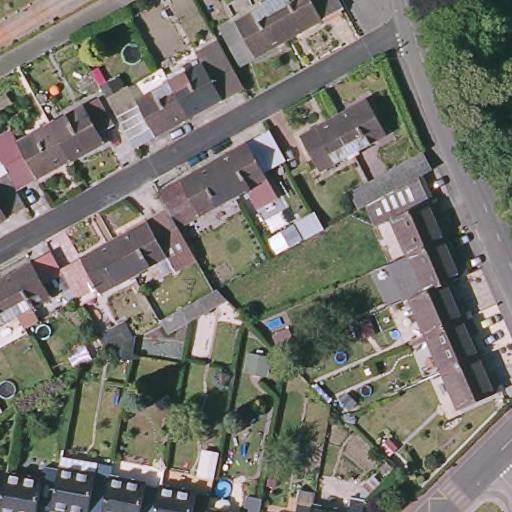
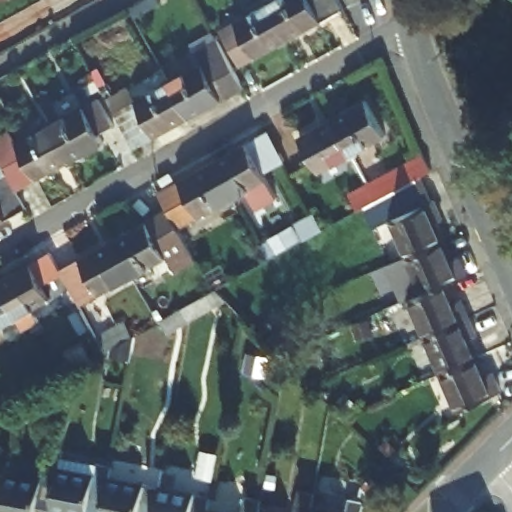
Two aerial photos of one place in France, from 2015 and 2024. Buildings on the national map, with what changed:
unchanged [(279,0),(339,0),(345,11),(290,41),(270,5),(279,0)]
unchanged [(290,41),(242,67),(222,31),(270,5),(290,41)]
unchanged [(190,119),(170,83),(203,65),(197,55),(221,42),(246,87),(190,119)]
unchanged [(170,83),(190,119),(135,149),(115,113),(170,83)]
unchanged [(50,126),(100,98),(115,128),(99,136),(103,144),(70,162),(50,126)]
unchanged [(335,118),(366,100),(385,136),(354,153),(335,118)]
unchanged [(319,172),(300,137),(335,118),(354,153),(319,172)]
unchanged [(18,191),(0,159),(0,154),(50,126),(70,162),(18,191)]
unchanged [(208,160),(265,130),(282,160),(260,171),(273,197),(253,208),(242,188),(228,196),(208,160)]
unchanged [(432,220),(440,240),(402,255),(386,218),(374,222),(365,204),(355,209),(346,192),(365,182),(421,152),(430,169),(419,175),(437,217),(432,220)]
unchanged [(27,208),(0,223),(0,159),(18,191),(27,208)]
unchanged [(163,209),(153,190),(208,160),(228,196),(174,227),(163,209)]
unchanged [(109,239),(163,209),(174,227),(190,257),(169,269),(162,256),(129,274),(109,239)]
unchanged [(295,222),(315,211),(325,229),(305,240),(295,222)]
unchanged [(59,274),(56,268),(109,239),(129,274),(75,303),(59,274)]
unchanged [(440,240),(447,256),(453,254),(461,274),(442,282),(418,292),(402,255),(440,240)]
unchanged [(0,279),(47,252),(56,268),(59,274),(40,284),(47,298),(13,316),(0,293),(0,279)]
unchanged [(422,334),(406,297),(418,292),(442,282),(450,301),(458,298),(465,316),(422,334)]
unchanged [(0,324),(0,293),(13,316),(0,324)]
unchanged [(422,334),(465,316),(465,317),(472,334),(465,337),(473,356),(437,370),(422,334)]
unchanged [(98,335),(125,320),(134,335),(137,333),(132,357),(108,353),(107,350),(98,335)]
unchanged [(287,330),(293,344),(280,349),(275,335),(287,330)]
unchanged [(437,370),(473,356),(481,374),(489,371),(496,389),(454,409),(437,370)]
unchanged [(107,475),(101,512),(93,512),(50,504),(55,479),(57,466),(92,473),(95,459),(110,462),(107,475)]
unchanged [(0,507),(0,470),(7,471),(0,507)]
unchanged [(50,504),(49,512),(11,512),(0,510),(0,507),(7,471),(55,479),(50,504)]
unchanged [(107,475),(158,485),(154,512),(101,512),(107,475)]
unchanged [(203,512),(154,512),(158,485),(206,494),(203,507),(203,512)]
unchanged [(307,503),(305,512),(291,512),(295,486),(310,488),(307,503)]
unchanged [(359,512),(305,512),(307,503),(342,508),(345,491),(361,495),(359,512)]
unchanged [(256,512),(240,512),(244,492),(259,495),(256,512)]
unchanged [(203,507),(232,512),(203,512),(203,507)]

